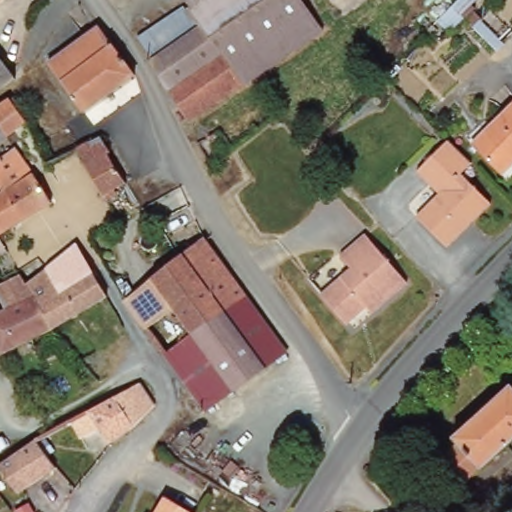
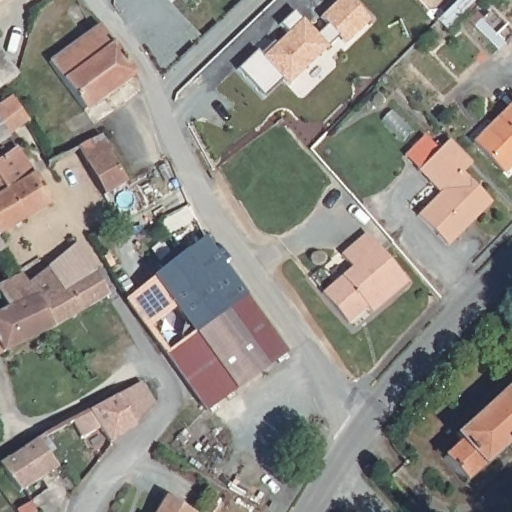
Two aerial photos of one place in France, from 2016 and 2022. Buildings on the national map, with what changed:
unchanged [(0,2),(0,0),(2,0),(0,2)]
demolished [(329,22),(277,63),(249,84),(212,37),(250,9),(261,0),(311,0),(329,22)]
new [(370,22),(345,44),(337,36),(287,86),(282,80),(262,98),(236,71),(256,50),(262,56),(286,33),(278,25),(293,11),(316,35),(327,25),(321,18),(339,0),(348,0),(370,22)]
unchanged [(448,30),(436,17),(450,4),(454,0),(478,0),(462,15),(448,30)]
demolished [(192,40),(182,47),(158,65),(143,44),(167,23),(187,7),(190,11),(206,30),(192,40)]
unchanged [(121,58),(132,73),(103,96),(68,48),(91,31),(97,27),(101,32),(121,58)]
demolished [(212,37),(249,84),(194,125),(183,107),(172,90),(158,65),(182,47),(192,40),(206,30),(212,37)]
unchanged [(83,111),(48,64),(68,48),(103,96),(83,111)]
unchanged [(2,89),(0,90),(0,57),(17,77),(2,89)]
unchanged [(14,104),(16,103),(30,124),(20,131),(11,137),(0,143),(0,113),(14,104)]
unchanged [(512,157),(500,170),(473,144),(512,105),(512,157)]
unchanged [(103,195),(93,178),(85,164),(92,160),(82,144),(101,135),(110,150),(106,152),(126,182),(103,195)]
unchanged [(462,172),(478,189),(494,203),(480,218),(451,247),(435,231),(419,216),(443,192),(433,182),(421,170),(451,140),(472,162),(462,172)]
unchanged [(1,235),(0,234),(0,161),(16,149),(26,163),(42,184),(55,202),(22,222),(1,235)]
unchanged [(352,269),(340,254),(367,231),(383,251),(408,282),(368,315),(363,309),(343,324),(320,296),(352,269)]
unchanged [(0,257),(0,236),(1,235),(11,251),(0,257)]
unchanged [(169,350),(158,334),(154,328),(145,317),(135,304),(130,296),(142,288),(170,268),(189,254),(212,237),(227,259),(235,269),(248,290),(245,292),(235,300),(219,312),(215,315),(202,325),(199,327),(186,337),(170,350),(169,350)]
unchanged [(65,287),(51,263),(80,243),(95,269),(65,287)]
unchanged [(22,272),(28,280),(51,263),(65,287),(80,315),(55,331),(35,295),(15,305),(1,283),(22,272)]
unchanged [(80,315),(65,287),(95,269),(110,298),(80,315)]
unchanged [(0,363),(0,284),(1,283),(15,305),(35,295),(55,331),(40,340),(6,360),(0,363)]
unchanged [(186,371),(170,350),(186,337),(199,327),(202,325),(215,315),(219,312),(235,300),(245,292),(248,290),(251,287),(267,312),(291,346),(265,365),(242,382),(223,396),(212,404),(186,371)]
unchanged [(479,467),(463,482),(442,460),(458,444),(451,436),(472,416),(491,397),(508,380),(512,384),(512,448),(485,473),(479,467)]
unchanged [(107,442),(99,427),(87,433),(81,437),(72,422),(79,419),(101,407),(112,401),(121,397),(125,395),(130,391),(143,384),(156,409),(140,420),(117,435),(107,442)]
unchanged [(36,439),(55,465),(27,484),(18,491),(0,468),(0,466),(10,458),(13,456),(30,443),(36,439)]
unchanged [(193,512),(156,512),(167,495),(193,512)]

